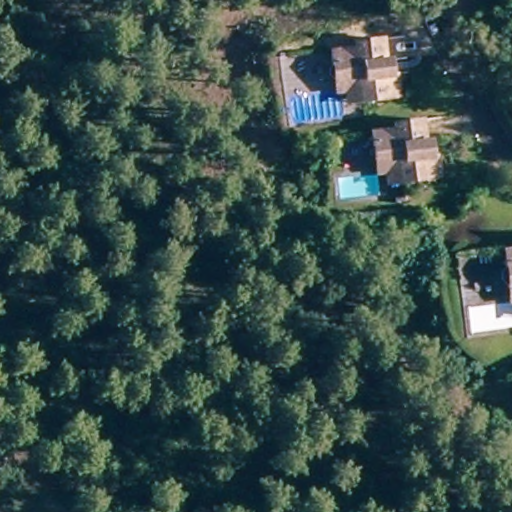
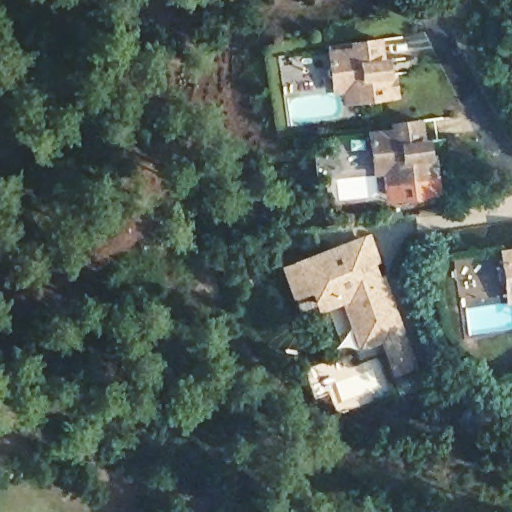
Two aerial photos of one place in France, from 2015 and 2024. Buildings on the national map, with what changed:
unchanged [(332,92),(330,79),(326,53),(353,49),(352,43),(381,39),(382,60),(377,61),(377,75),(391,74),(393,98),(357,103),(344,104),(342,90),(332,92)]
unchanged [(383,175),(372,177),(371,163),(367,139),(397,134),(397,127),(420,125),(421,145),(417,145),(420,161),(433,159),(437,182),(398,187),(386,189),(383,175)]
new [(389,349),(383,334),(361,342),(342,290),(320,299),(314,282),(294,289),(284,262),(303,254),(362,234),(377,275),(382,274),(413,360),(401,364),(396,367),(389,349)]
unchanged [(506,302),(505,289),(501,251),(512,250),(512,301),(506,302)]

